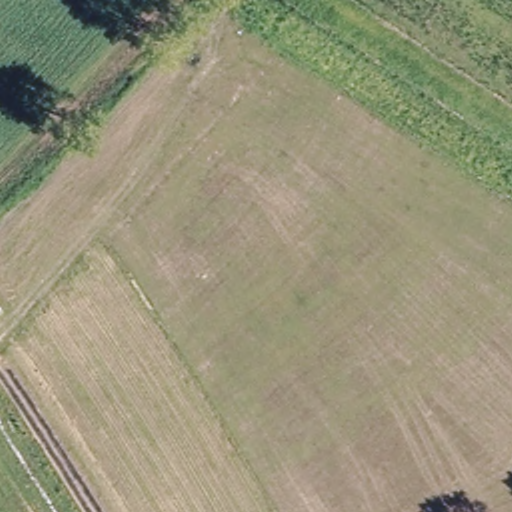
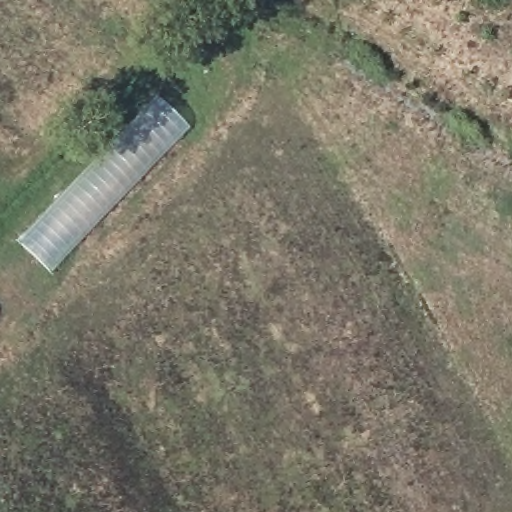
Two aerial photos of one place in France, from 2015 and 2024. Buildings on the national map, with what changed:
new [(206,17),(181,45),(162,28),(187,1),(206,17)]
new [(61,192),(96,158),(119,130),(155,91),(191,126),(50,273),(16,241),(61,192)]
unchanged [(0,313),(0,306),(4,310),(0,313)]

